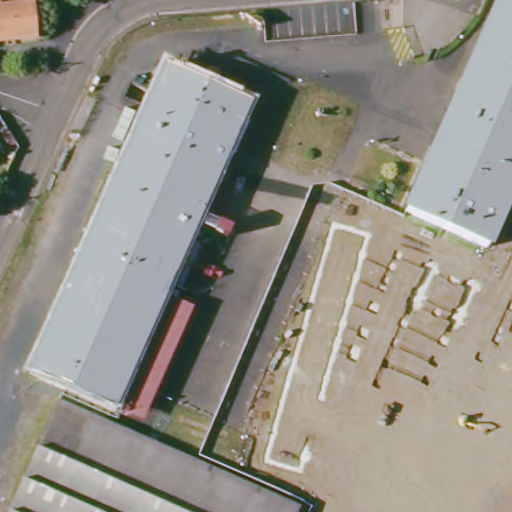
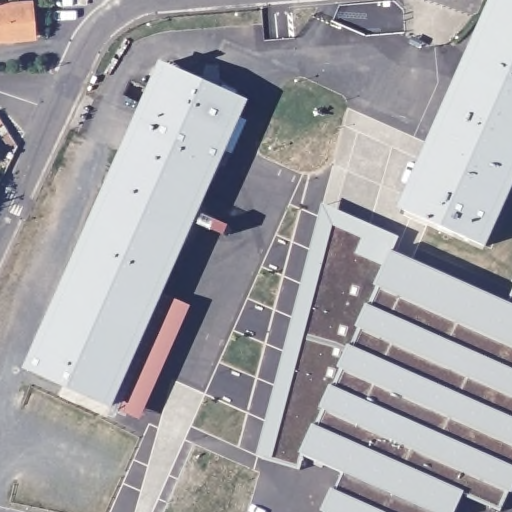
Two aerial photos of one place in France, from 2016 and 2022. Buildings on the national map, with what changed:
unchanged [(497,0),(512,0),(512,183),(483,247),(401,210),(497,0)]
unchanged [(33,37),(0,41),(0,5),(29,2),(33,37)]
unchanged [(61,386),(29,372),(165,66),(246,102),(111,409),(103,425),(54,403),(61,386)]
new [(339,490),(345,475),(304,456),(301,470),(264,459),(264,456),(259,454),(323,204),(402,237),(394,250),(511,302),(512,299),(512,496),(505,512),(502,512),(467,496),(460,512),(324,512),(335,490),(339,490)]
demolished [(103,425),(293,509),(292,512),(6,512),(54,403),(103,425)]

